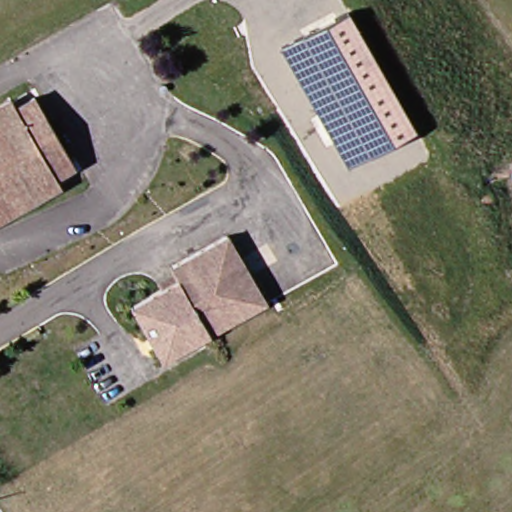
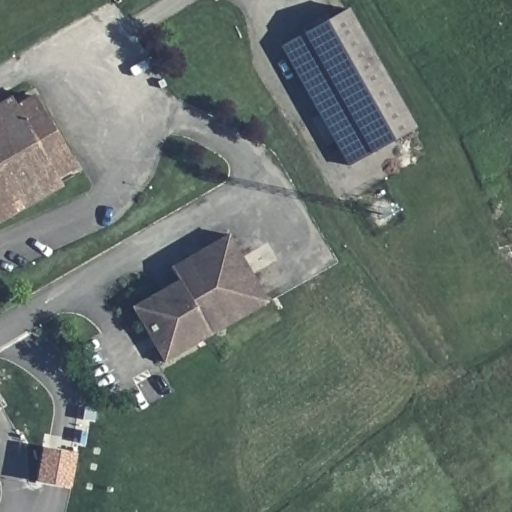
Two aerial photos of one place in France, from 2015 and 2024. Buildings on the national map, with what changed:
unchanged [(348,165),(278,46),(350,6),(414,128),(348,165)]
unchanged [(20,99),(25,107),(43,97),(82,166),(63,175),(67,184),(0,221),(0,110),(20,99)]
unchanged [(271,299),(165,355),(133,299),(181,274),(172,261),(231,230),(271,299)]
new [(43,448),(77,454),(71,490),(37,484),(43,448)]

